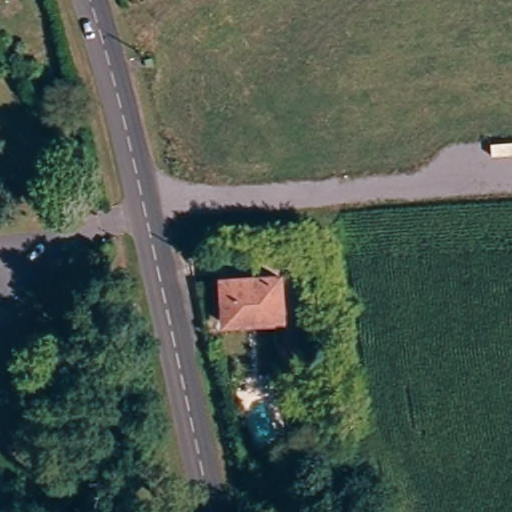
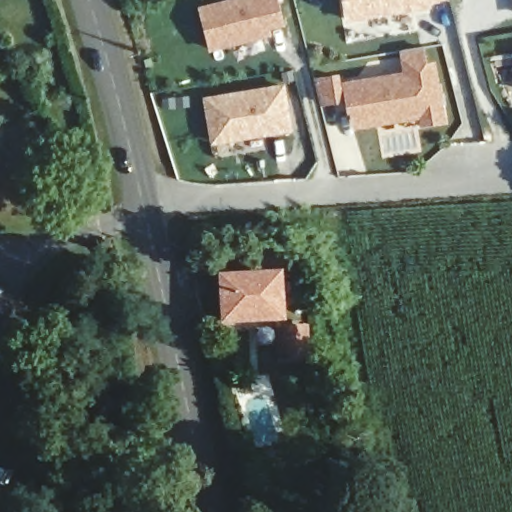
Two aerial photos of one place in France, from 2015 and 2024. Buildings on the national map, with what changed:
new [(270,31),(272,37),(211,52),(198,8),(227,0),(279,0),(286,26),(270,31)]
new [(347,25),(342,0),(431,0),(432,11),(347,25)]
new [(341,74),(342,82),(404,75),(401,55),(425,51),(427,65),(437,63),(446,123),(421,126),(420,120),(353,131),(347,102),(323,106),(318,79),(341,74)]
new [(294,133),(212,146),(202,98),(287,83),(294,133)]
unchanged [(280,310),(267,309),(213,308),(214,273),(267,274),(281,274),(280,310)]
unchanged [(267,319),(287,321),(284,348),(269,347),(268,339),(267,319)]

